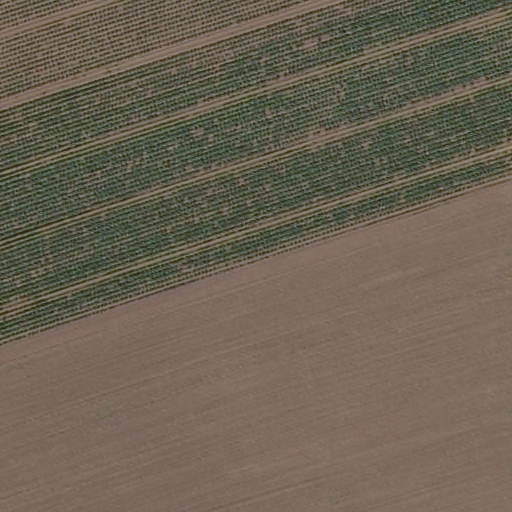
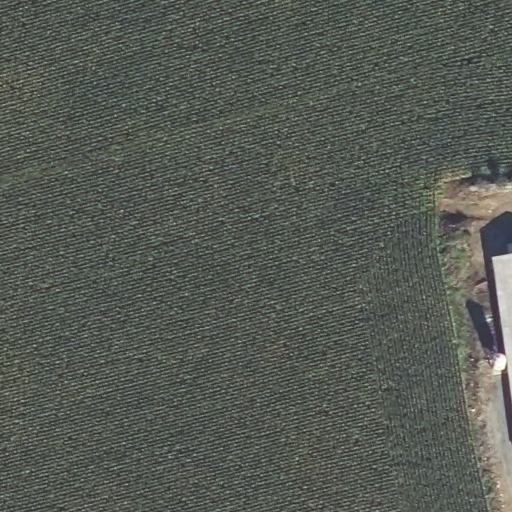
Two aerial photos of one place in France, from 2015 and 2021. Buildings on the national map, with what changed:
new [(512,260),(512,388),(493,263),(512,260)]

